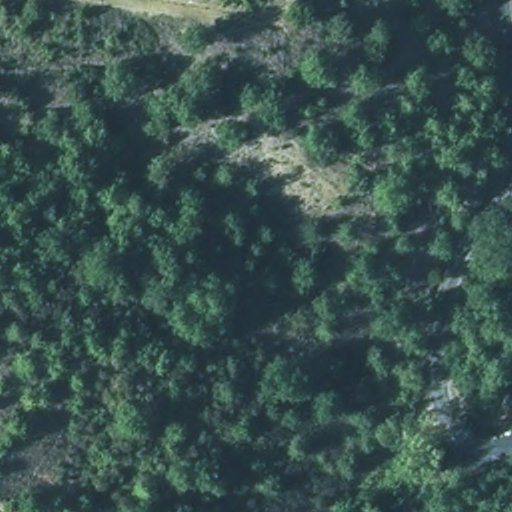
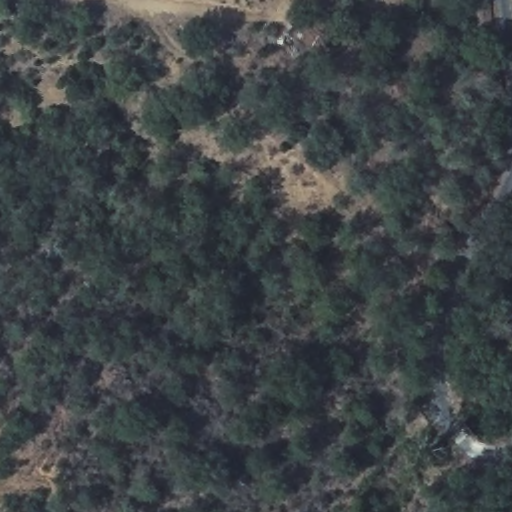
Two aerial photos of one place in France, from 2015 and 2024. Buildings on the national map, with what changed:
[]

